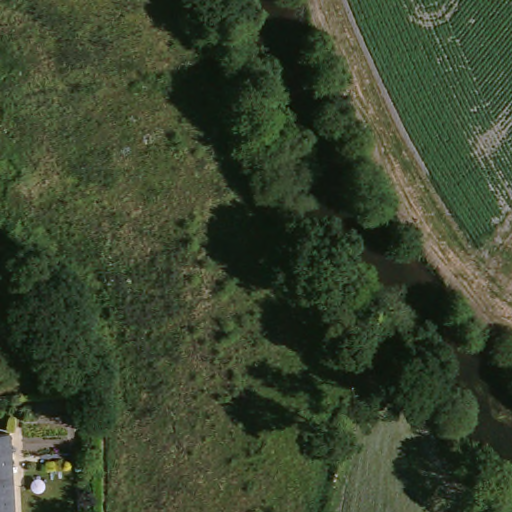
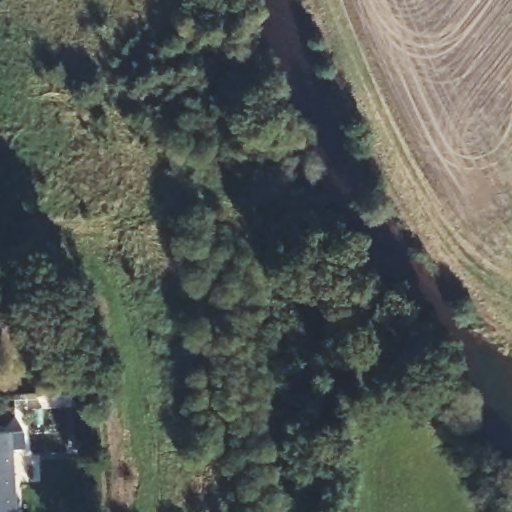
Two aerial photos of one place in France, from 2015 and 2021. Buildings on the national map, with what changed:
unchanged [(11,512),(0,512),(0,436),(7,435),(11,512)]

